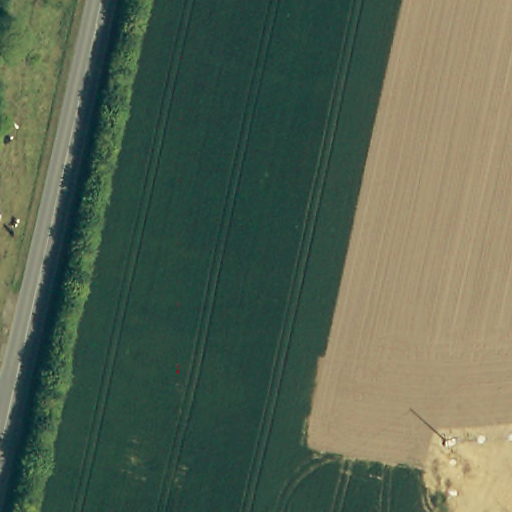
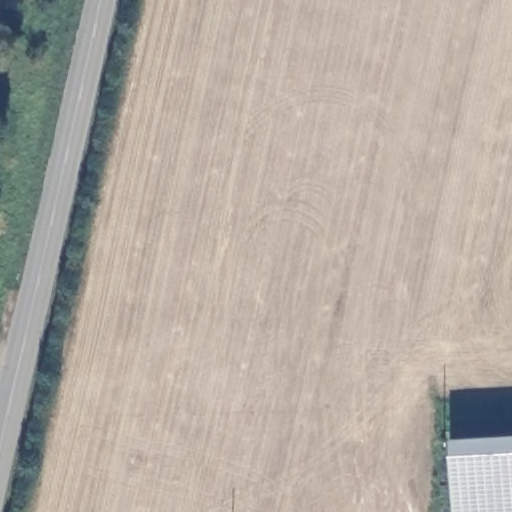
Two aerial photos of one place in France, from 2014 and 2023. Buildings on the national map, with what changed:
new [(451,455),(452,438),(512,435),(512,512),(454,512),(451,455)]

